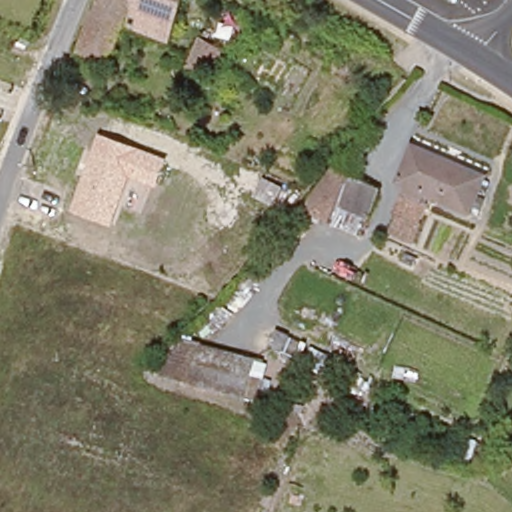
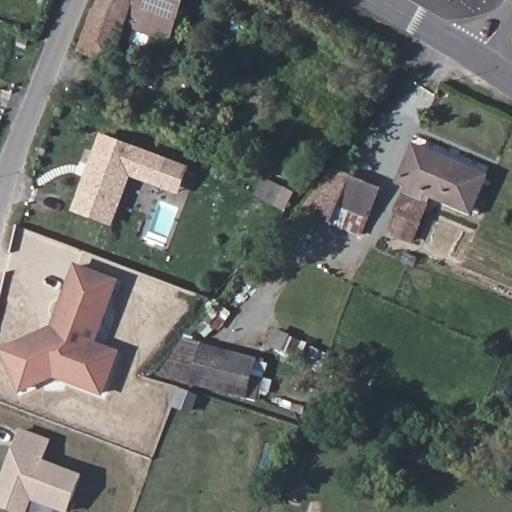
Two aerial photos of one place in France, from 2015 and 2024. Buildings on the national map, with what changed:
unchanged [(123,24),(103,64),(68,49),(86,10),(93,0),(184,0),(168,33),(123,24)]
unchanged [(217,76),(191,71),(199,40),(227,52),(217,76)]
unchanged [(159,188),(130,177),(112,227),(74,212),(103,135),(170,159),(159,188)]
unchanged [(470,216),(398,188),(411,151),(484,179),(470,216)]
unchanged [(363,233),(302,213),(332,172),(382,190),(363,233)]
unchanged [(415,245),(391,234),(399,215),(421,224),(415,245)]
new [(105,396),(55,378),(20,395),(1,350),(52,327),(76,263),(121,281),(98,343),(121,352),(105,396)]
unchanged [(256,401),(163,374),(184,337),(264,358),(256,401)]
new [(46,442),(39,462),(77,477),(72,505),(29,500),(24,512),(13,512),(0,507),(0,479),(3,472),(18,432),(46,442)]

